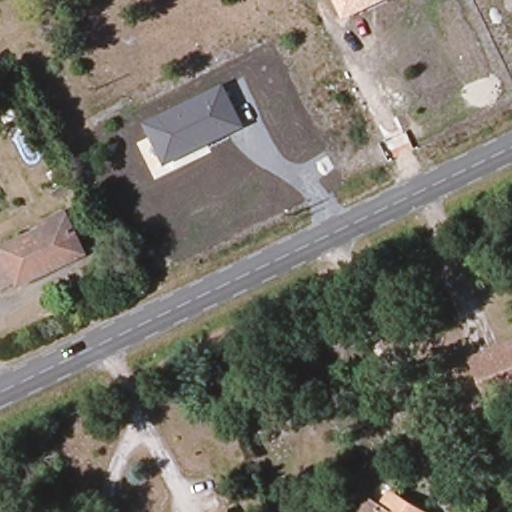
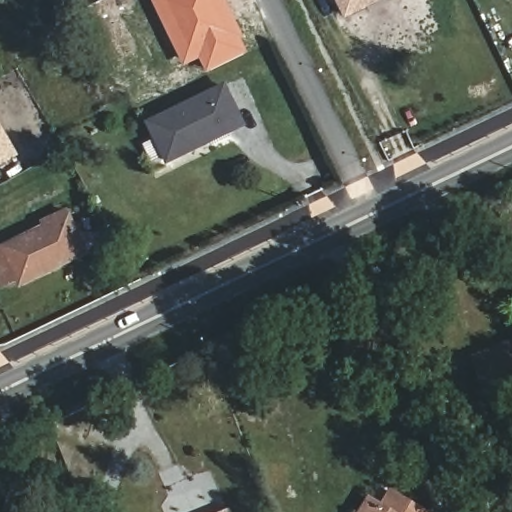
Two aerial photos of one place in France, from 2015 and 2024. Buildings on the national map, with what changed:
new [(238,38),(247,56),(214,72),(205,54),(190,62),(159,0),(224,0),(242,36),(238,38)]
unchanged [(335,0),(386,0),(346,20),(335,0)]
unchanged [(168,166),(147,124),(227,84),(249,127),(168,166)]
new [(17,157),(0,165),(0,121),(17,157)]
unchanged [(0,285),(0,248),(73,209),(87,244),(1,287),(0,285)]
unchanged [(470,357),(512,340),(512,400),(491,409),(470,357)]
unchanged [(379,506),(391,489),(427,512),(357,512),(367,497),(379,506)]
unchanged [(230,512),(223,512),(229,509),(230,512)]

